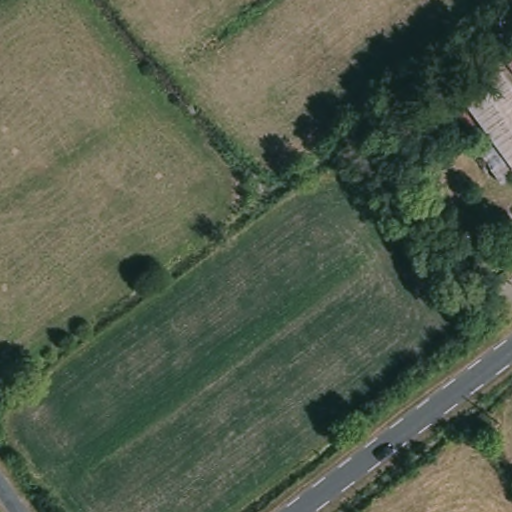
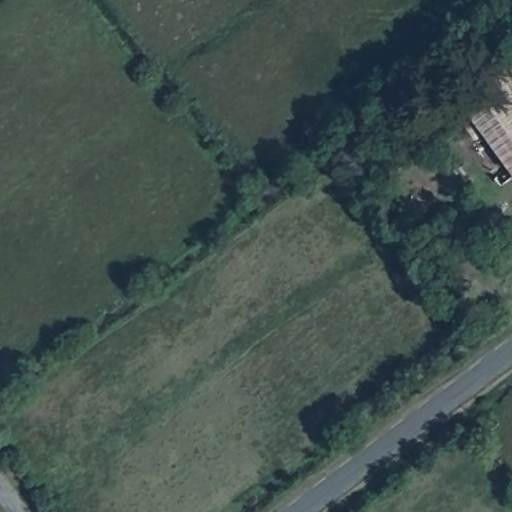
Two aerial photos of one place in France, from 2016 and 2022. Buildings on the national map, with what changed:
unchanged [(512,64),(506,55),(512,50),(512,64)]
unchanged [(512,69),(512,160),(496,139),(504,131),(475,92),(510,66),(512,69)]
unchanged [(496,139),(512,160),(512,184),(508,186),(478,149),(486,142),(456,106),(475,92),(504,131),(496,139)]
unchanged [(483,220),(496,237),(483,250),(469,231),(483,220)]

